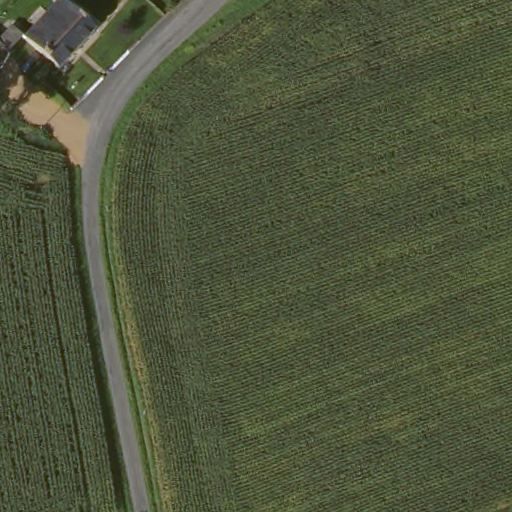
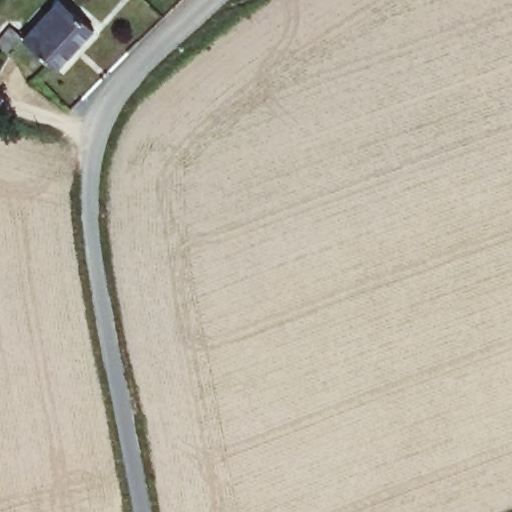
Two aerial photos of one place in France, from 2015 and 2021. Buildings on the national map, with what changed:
unchanged [(70,4),(98,33),(59,66),(30,36),(70,4)]
unchanged [(11,21),(20,30),(11,39),(2,30),(11,21)]

